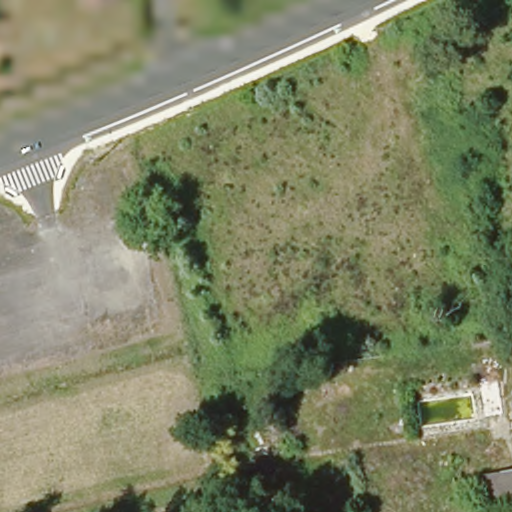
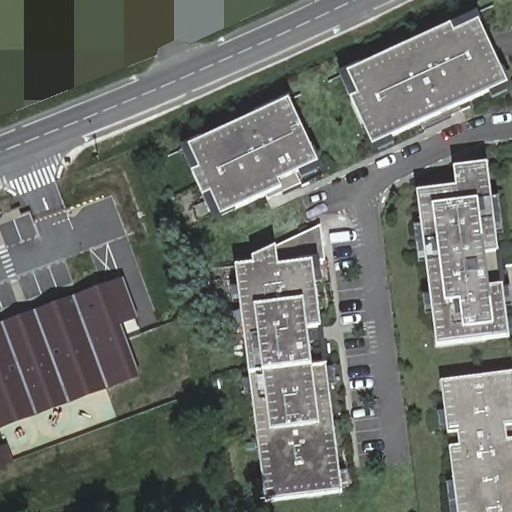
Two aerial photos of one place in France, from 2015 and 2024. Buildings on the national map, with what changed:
unchanged [(75,0),(106,0),(76,5),(75,0)]
new [(458,24),(483,12),(486,20),(512,76),(512,86),(467,106),(469,111),(428,130),(426,125),(378,147),(355,99),(345,75),(353,71),(458,24)]
new [(209,195),(196,168),(186,145),(193,141),(296,95),(326,160),(303,170),(309,181),(273,197),(271,194),(227,214),(219,217),(209,195)]
new [(512,339),(440,347),(421,190),(461,185),(459,165),(493,161),(512,318),(512,339)]
new [(257,260),(256,254),(326,222),(331,258),(318,260),(326,325),(312,326),(317,363),(330,361),(347,493),(268,502),(239,262),(257,260)]
new [(119,276),(134,315),(112,322),(134,376),(0,426),(0,320),(119,276)]
new [(452,445),(462,445),(460,431),(450,432),(444,379),(512,371),(512,512),(460,512),(452,445)]
demolished [(495,377),(498,411),(481,414),(475,380),(495,377)]
demolished [(263,428),(281,425),(284,452),(268,455),(263,428)]
new [(3,443),(10,463),(0,466),(0,444),(3,443)]
demolished [(512,470),(512,499),(489,502),(485,474),(512,470)]

